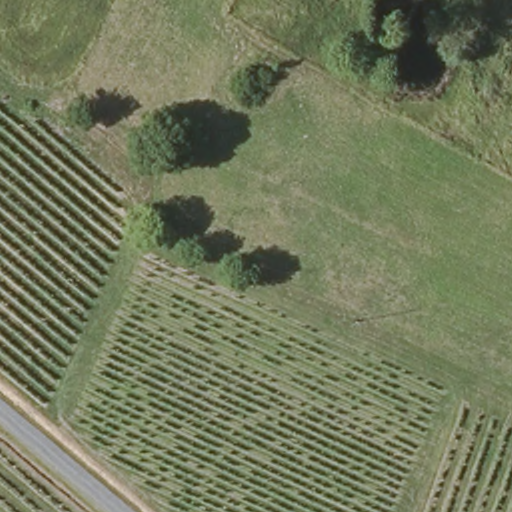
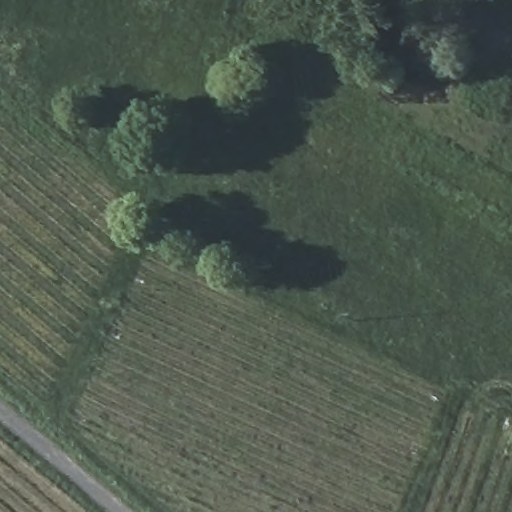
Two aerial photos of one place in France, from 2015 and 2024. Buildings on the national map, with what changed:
[]

